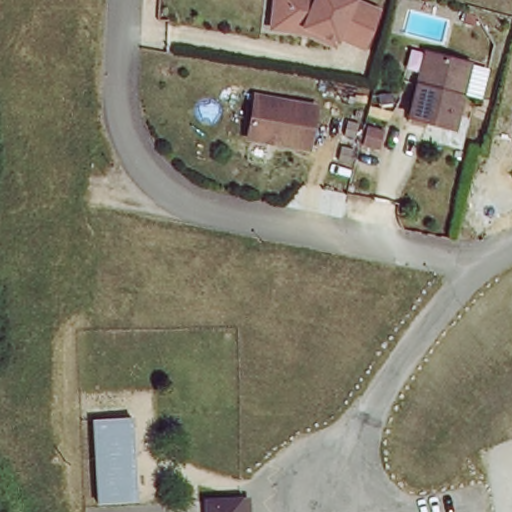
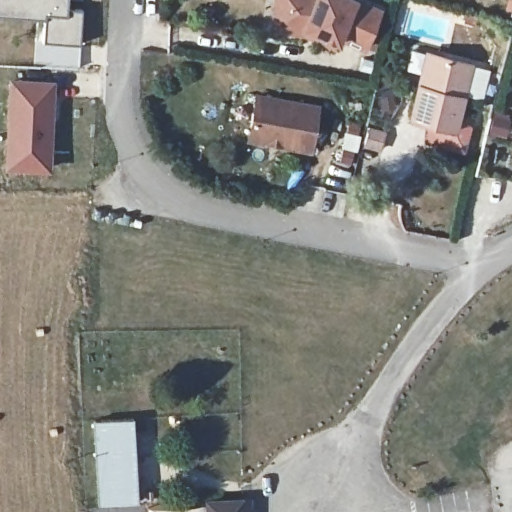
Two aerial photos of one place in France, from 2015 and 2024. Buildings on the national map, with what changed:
new [(41,40),(41,19),(0,14),(0,0),(65,0),(65,7),(80,9),(77,44),(41,40)]
unchanged [(272,0),(382,0),(384,1),(370,47),(270,27),(272,0)]
unchanged [(425,51),(475,61),(461,129),(408,118),(425,51)]
new [(4,167),(8,79),(52,81),(48,170),(4,167)]
unchanged [(242,142),(252,85),(322,97),(308,152),(242,142)]
unchanged [(140,502),(99,507),(93,419),(133,416),(140,502)]
unchanged [(211,504),(244,502),(252,501),(253,512),(212,512),(211,504)]

